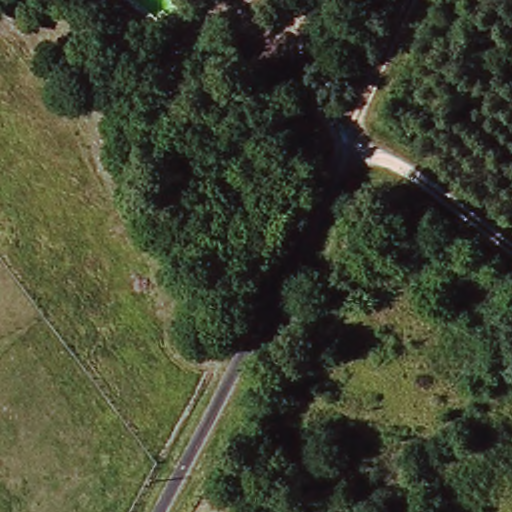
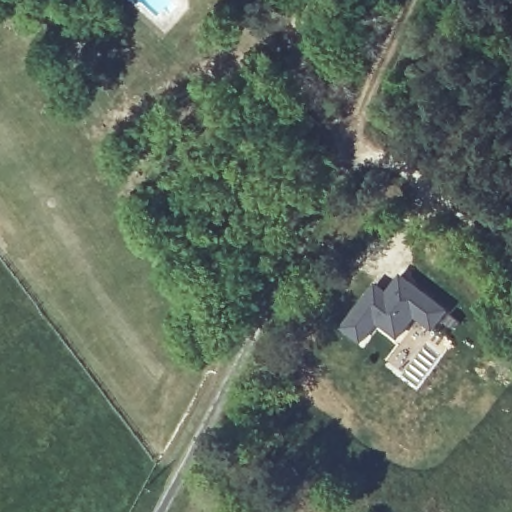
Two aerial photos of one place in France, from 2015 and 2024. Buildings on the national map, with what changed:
new [(378,282),(389,290),(402,273),(449,309),(435,328),(417,314),(400,335),(378,319),(363,339),(345,325),(378,282)]

